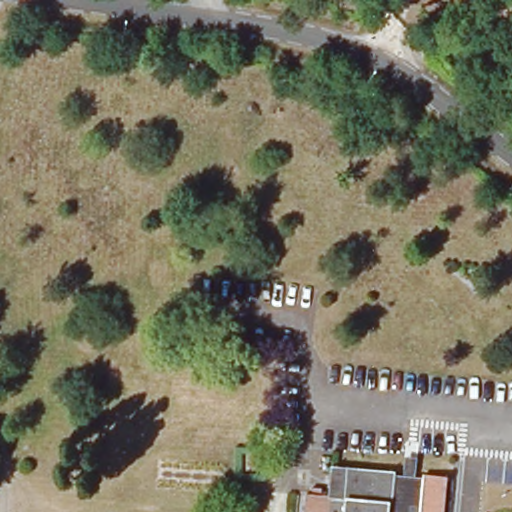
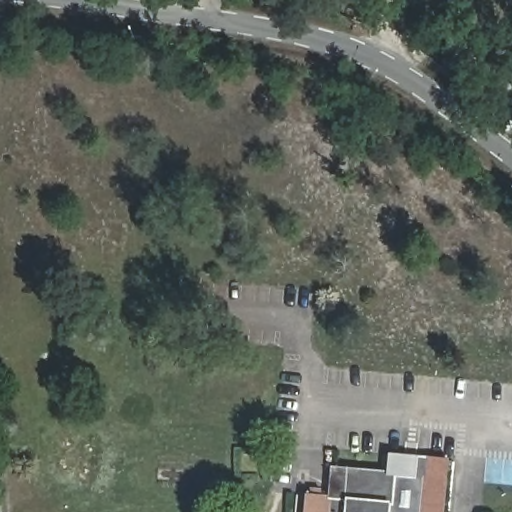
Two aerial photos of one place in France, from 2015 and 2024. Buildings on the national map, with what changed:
unchanged [(423,459),(421,479),(452,482),(449,512),(304,512),(306,497),(332,500),(335,470),(350,471),(407,477),(410,457),(423,459)]

